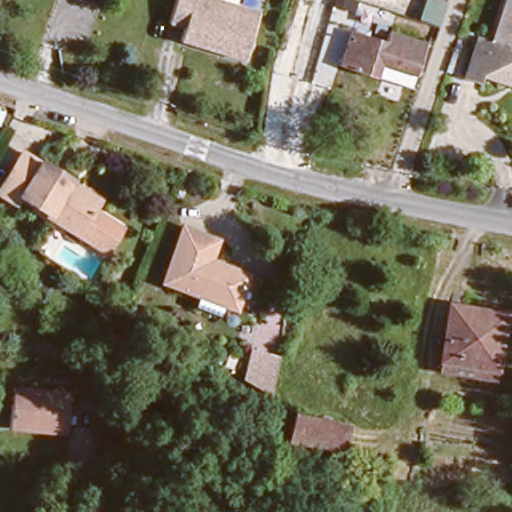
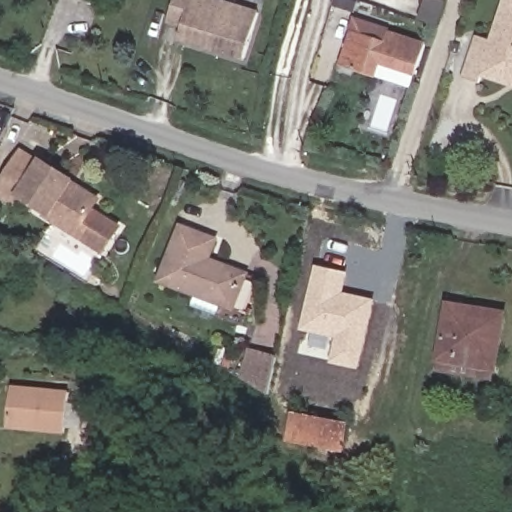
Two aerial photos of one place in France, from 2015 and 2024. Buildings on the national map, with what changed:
unchanged [(240,59),(175,41),(177,26),(163,22),(170,0),(214,0),(254,11),(240,59)]
unchanged [(464,77),(478,35),(492,40),(506,0),(512,0),(512,85),(482,75),(479,83),(464,77)]
unchanged [(385,37),(387,30),(424,42),(409,87),(339,66),(352,27),(385,37)]
unchanged [(70,230),(66,237),(36,221),(41,211),(11,196),(2,214),(0,213),(0,171),(8,157),(28,167),(31,163),(59,179),(55,187),(85,202),(81,209),(110,224),(99,245),(70,230)]
unchanged [(158,275),(176,220),(208,231),(201,257),(211,260),(213,255),(225,258),(242,264),(230,300),(219,296),(158,275)]
new [(333,340),(298,331),(313,267),(346,274),(342,295),(372,301),(357,371),(328,365),(333,340)]
unchanged [(440,359),(442,347),(449,293),(502,304),(495,357),(494,369),(440,359)]
new [(250,350),(276,360),(271,397),(241,378),(250,350)]
unchanged [(66,386),(65,427),(6,425),(7,383),(66,386)]
unchanged [(292,413),(349,422),(344,446),(288,437),(292,413)]

